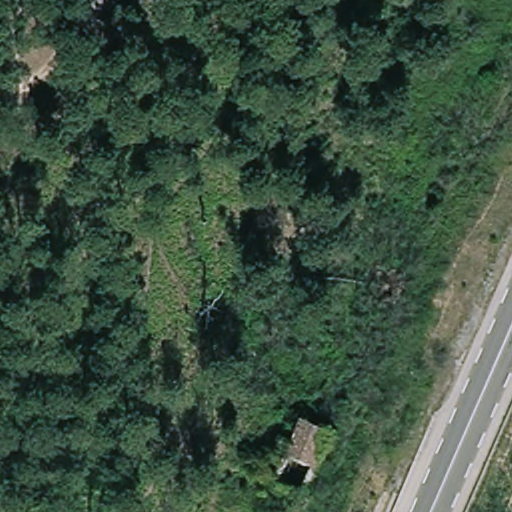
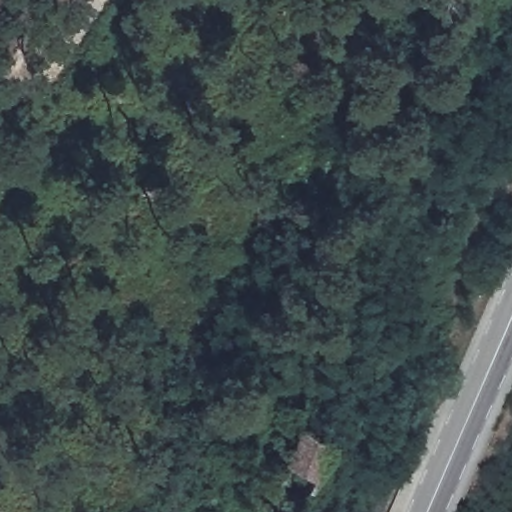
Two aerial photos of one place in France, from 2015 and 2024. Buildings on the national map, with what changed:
unchanged [(288,459),(302,422),(332,436),(317,470),(288,459)]

